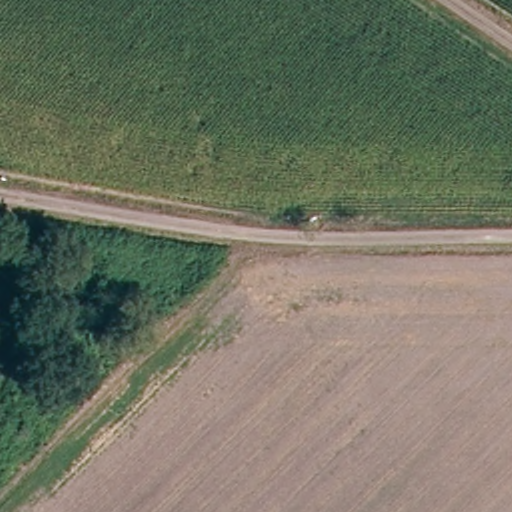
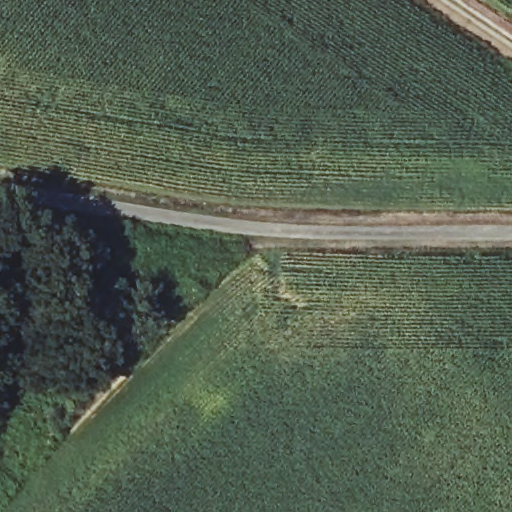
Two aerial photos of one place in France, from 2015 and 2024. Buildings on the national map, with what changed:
[]

